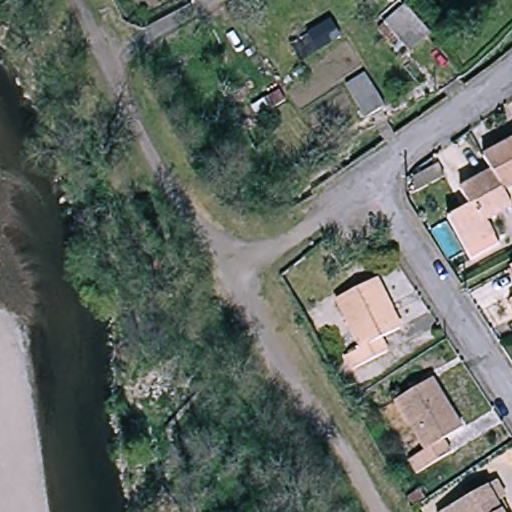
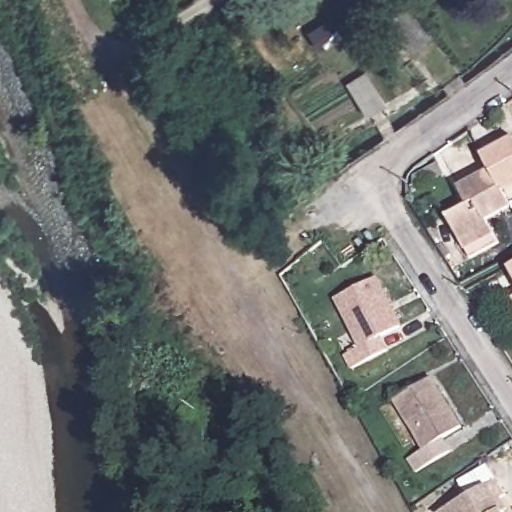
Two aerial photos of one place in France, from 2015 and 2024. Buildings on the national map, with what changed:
unchanged [(389,21),(409,4),(434,35),(407,58),(396,46),(398,45),(383,27),(389,21)]
unchanged [(369,118),(348,87),(369,75),(389,104),(369,118)]
unchanged [(507,187),(495,166),(487,153),(512,138),(512,184),(507,187)]
unchanged [(512,196),(512,207),(490,218),(500,233),(473,248),(452,211),(471,200),(463,184),(495,166),(507,187),(512,196)]
unchanged [(511,265),(512,264),(512,267),(511,265)]
unchanged [(364,286),(389,334),(368,346),(374,358),(339,375),(331,363),(349,354),(324,308),(364,286)]
unchanged [(508,299),(512,297),(512,306),(508,299)]
unchanged [(465,424),(445,437),(453,450),(420,469),(411,454),(428,445),(399,399),(436,376),(465,424)]
unchanged [(492,475),(505,493),(497,498),(507,512),(445,512),(442,506),(492,475)]

